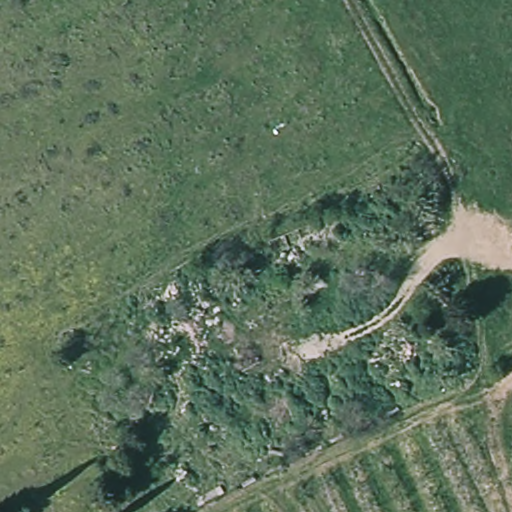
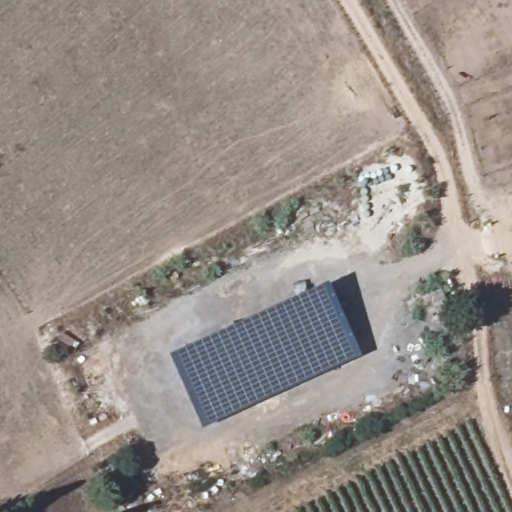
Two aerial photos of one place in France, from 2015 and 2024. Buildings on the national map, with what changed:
new [(202,427),(168,354),(328,281),(362,354),(202,427)]

